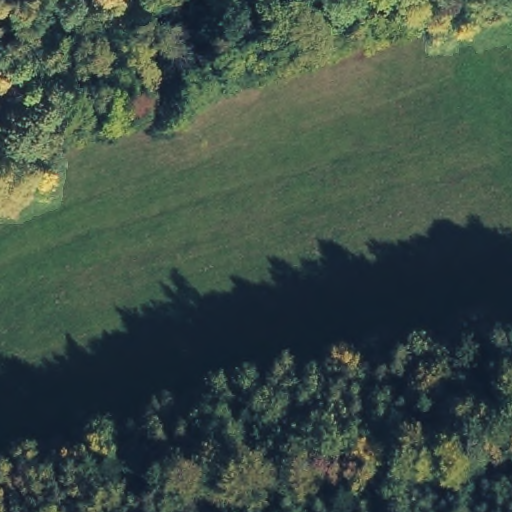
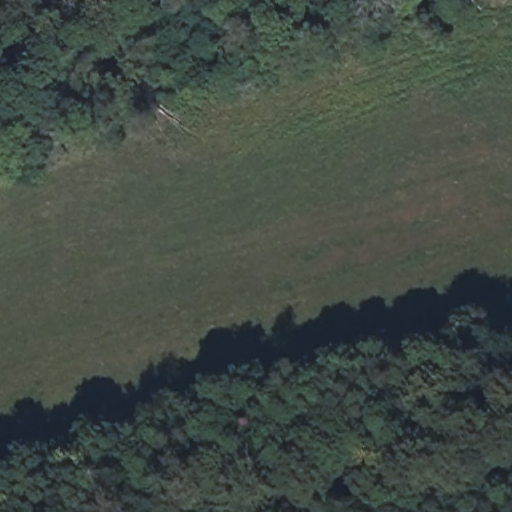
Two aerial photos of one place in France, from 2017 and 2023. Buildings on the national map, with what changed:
[]

